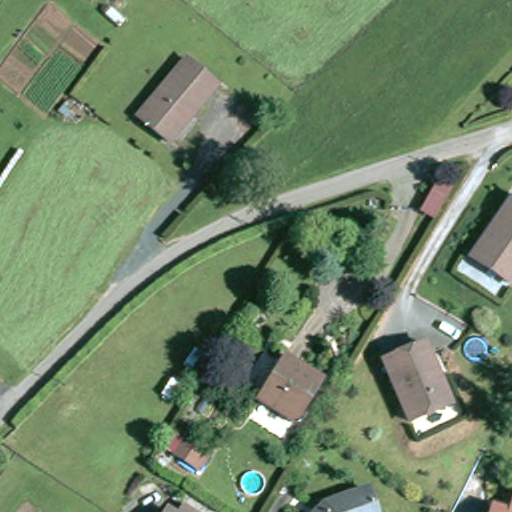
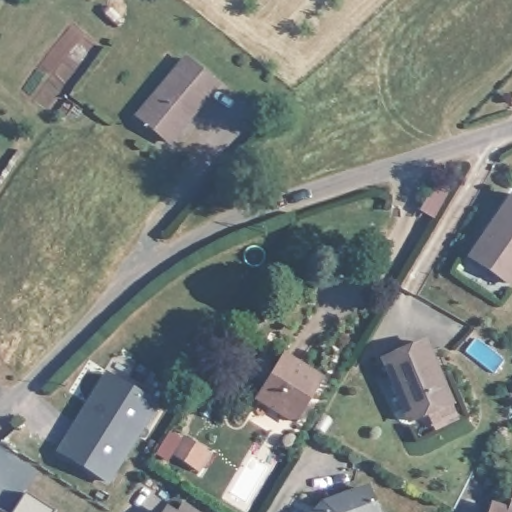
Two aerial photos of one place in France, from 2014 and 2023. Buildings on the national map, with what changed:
unchanged [(139,117),(187,60),(218,86),(170,142),(139,117)]
unchanged [(471,259),(512,200),(512,282),(509,285),(471,259)]
unchanged [(447,406),(411,422),(384,360),(426,342),(442,380),(452,405),(447,406)]
unchanged [(306,396),(309,398),(295,421),(258,398),(286,355),(319,376),(306,396)]
new [(76,426),(82,430),(98,404),(91,400),(108,375),(156,406),(108,481),(60,451),(76,426)]
unchanged [(325,503),(368,489),(376,512),(325,512),(327,510),(325,503)]
unchanged [(512,512),(492,512),(494,505),(512,512)]
unchanged [(512,505),(512,512),(510,511),(512,505)]
unchanged [(187,512),(183,512),(184,510),(187,512)]

